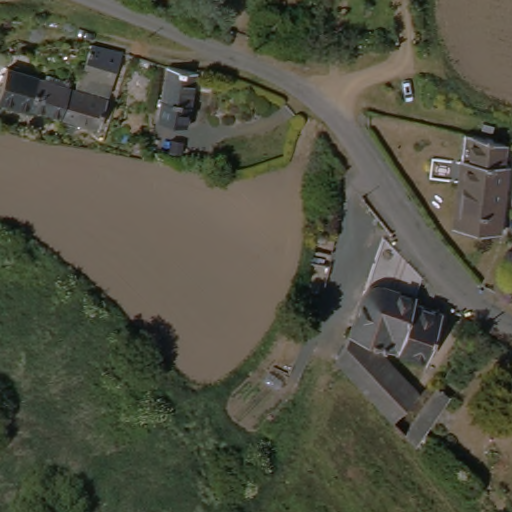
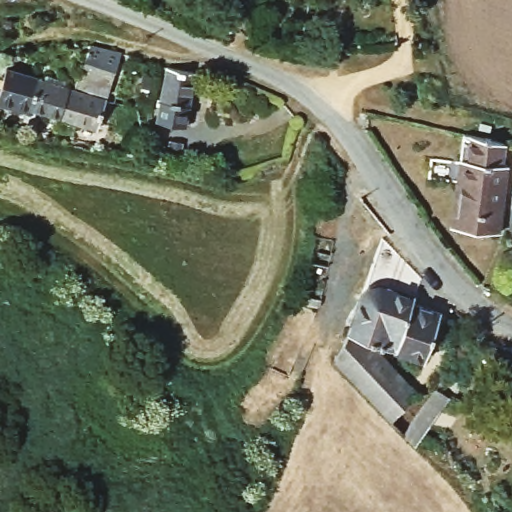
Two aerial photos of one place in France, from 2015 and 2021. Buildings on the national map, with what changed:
unchanged [(90,46),(123,54),(109,95),(78,87),(90,46)]
unchanged [(59,115),(59,117),(4,104),(13,71),(71,86),(64,116),(59,115)]
unchanged [(189,128),(159,122),(169,71),(193,75),(198,77),(189,128)]
unchanged [(78,87),(109,95),(101,125),(64,116),(71,86),(78,87)]
unchanged [(504,159),(512,160),(512,175),(505,227),(457,222),(466,163),(474,128),(508,137),(504,159)]
unchanged [(354,336),(362,310),(368,302),(373,293),(379,290),(386,289),(393,291),(418,300),(416,304),(442,315),(425,360),(378,344),(356,337),(354,336)]
unchanged [(411,378),(383,407),(336,361),(356,337),(378,344),(411,378)]
unchanged [(456,408),(416,445),(402,432),(442,395),(456,408)]

